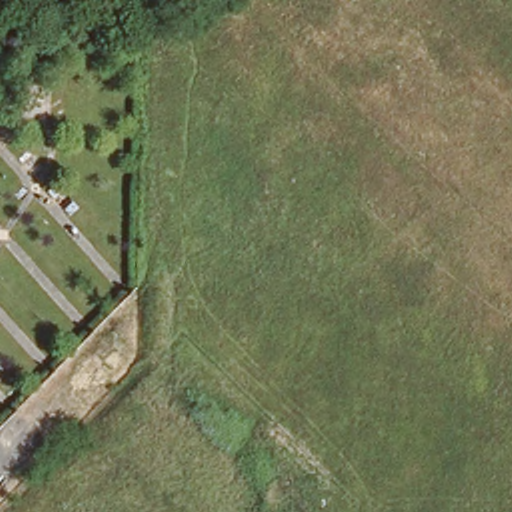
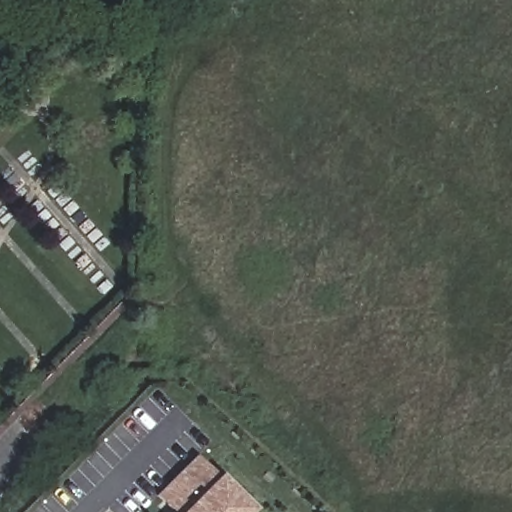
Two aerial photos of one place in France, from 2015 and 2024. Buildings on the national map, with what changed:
new [(217,475),(179,512),(172,512),(156,496),(196,455),(217,475)]
new [(217,475),(219,472),(255,508),(251,512),(179,512),(217,475)]

